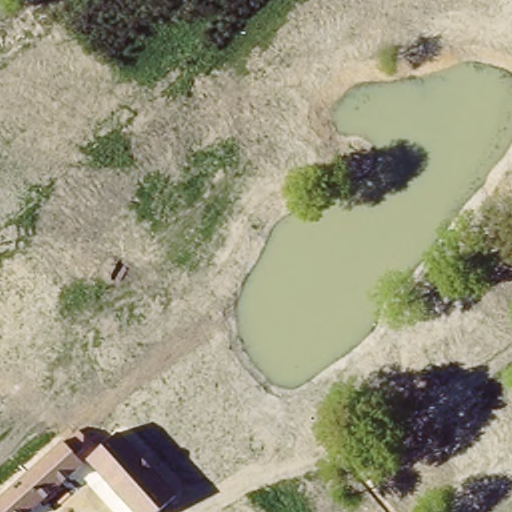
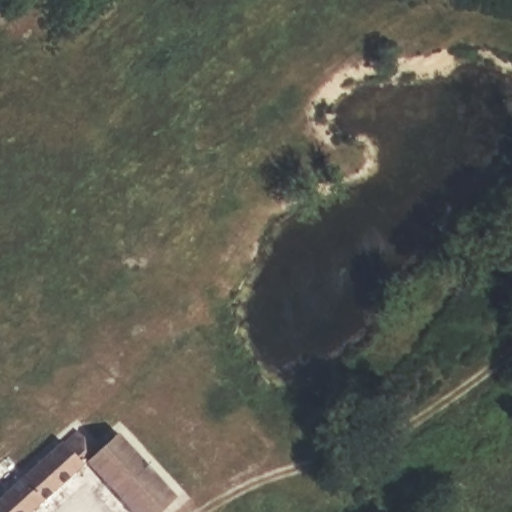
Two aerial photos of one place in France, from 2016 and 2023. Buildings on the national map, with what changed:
unchanged [(92,440),(103,451),(123,434),(179,499),(162,511),(163,512),(136,512),(91,463),(79,451),(92,440)]
unchanged [(91,463),(32,512),(0,512),(0,502),(70,441),(79,451),(91,463)]

